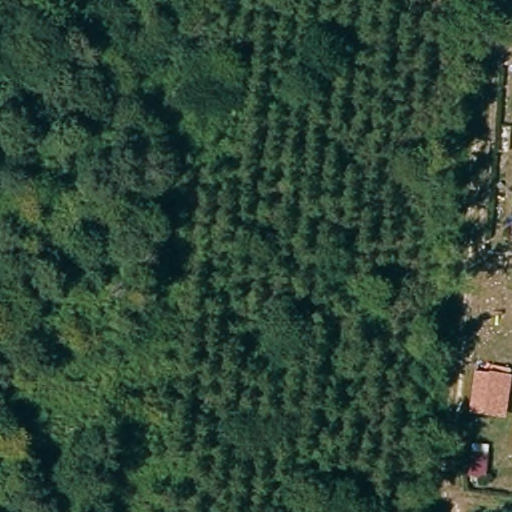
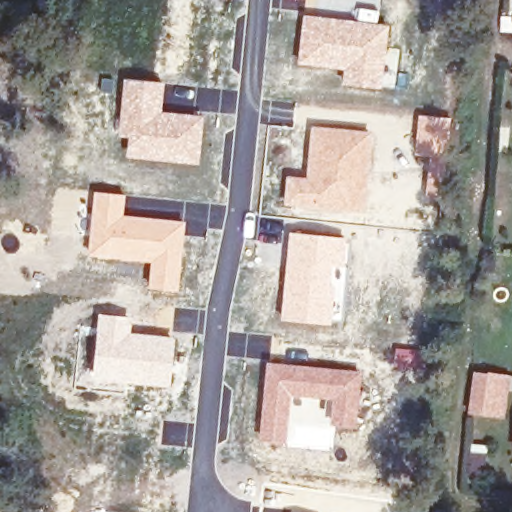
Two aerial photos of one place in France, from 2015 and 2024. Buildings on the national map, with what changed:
new [(303,14),(355,20),(356,6),(379,9),(378,22),(389,24),(386,48),(398,50),(393,70),(385,69),(382,87),(340,85),(342,70),(297,64),(303,14)]
new [(123,77),(164,81),(162,110),(203,115),(199,165),(124,157),(126,137),(116,136),(123,77)]
new [(418,115),(450,117),(442,198),(425,197),(428,155),(415,154),(418,115)]
new [(286,175),(305,176),(311,125),(372,131),(365,214),(283,206),(286,175)]
new [(93,190),(125,194),(123,214),(185,221),(178,291),(147,287),(149,262),(86,256),(93,190)]
new [(289,231),(348,238),(343,270),(337,268),(331,325),(280,320),(289,231)]
new [(98,312),(131,316),(130,331),(175,337),(169,387),(92,379),(98,312)]
new [(266,361),(362,370),(357,430),(327,426),(329,401),(292,397),(286,445),(257,441),(266,361)]
unchanged [(509,375),(504,419),(480,417),(485,371),(509,375)]

